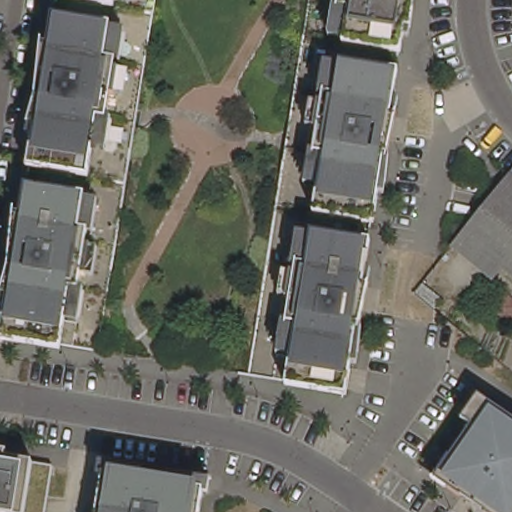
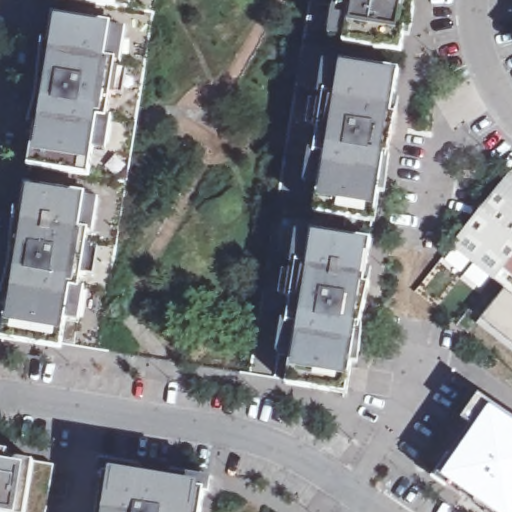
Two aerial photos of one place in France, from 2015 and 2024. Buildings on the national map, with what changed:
unchanged [(135,10),(97,4),(69,0),(137,0),(135,10)]
unchanged [(420,24),(415,50),(357,40),(321,35),(327,0),(423,0),(420,24)]
unchanged [(95,22),(132,28),(107,182),(70,176),(12,167),(23,99),(21,99),(25,74),(27,58),(30,58),(36,13),(95,22)]
unchanged [(355,63),(413,73),(406,118),(408,118),(401,159),(400,159),(388,227),(330,217),(293,211),(318,57),(355,63)]
unchanged [(505,269),(492,284),(450,247),(512,170),(512,275),(505,269)]
unchanged [(114,200),(90,349),(90,350),(88,350),(87,350),(52,344),(25,340),(0,336),(0,302),(5,269),(3,268),(7,247),(10,228),(12,228),(19,184),(76,194),(114,200)]
unchanged [(316,235),(375,244),(368,288),(370,289),(368,303),(364,329),(361,329),(355,371),(351,393),(351,395),(292,385),(256,380),(280,229),(316,235)]
new [(481,320),(505,289),(512,295),(512,345),(481,320)]
unchanged [(512,420),(512,512),(484,512),(438,480),(432,476),(485,400),(512,420)]
unchanged [(25,508),(3,504),(0,512),(0,446),(35,451),(25,508)]
unchanged [(142,488),(164,492),(166,482),(206,489),(204,500),(202,512),(98,512),(104,472),(143,479),(142,488)]

